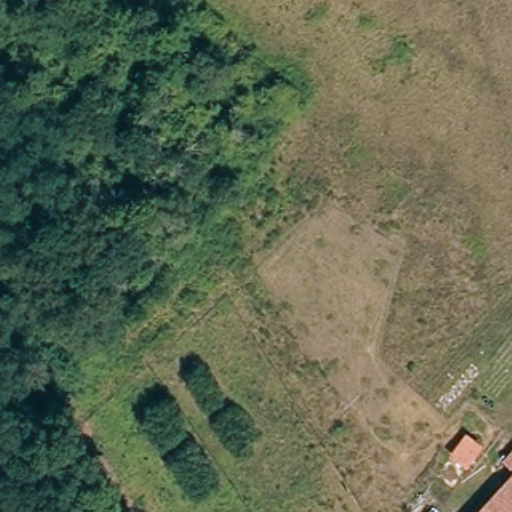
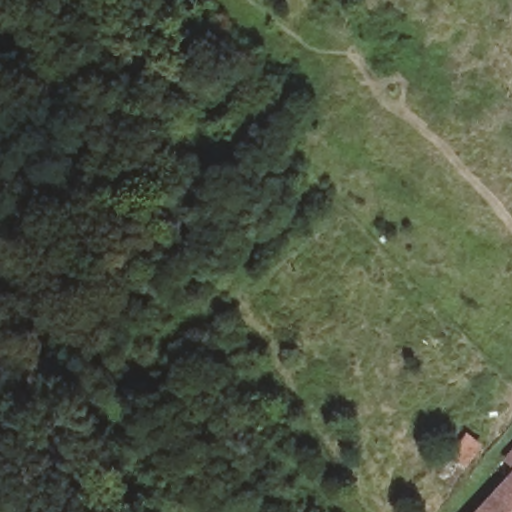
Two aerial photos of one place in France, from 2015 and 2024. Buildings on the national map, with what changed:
unchanged [(501,460),(512,449),(512,512),(474,512),(511,470),(501,460)]

